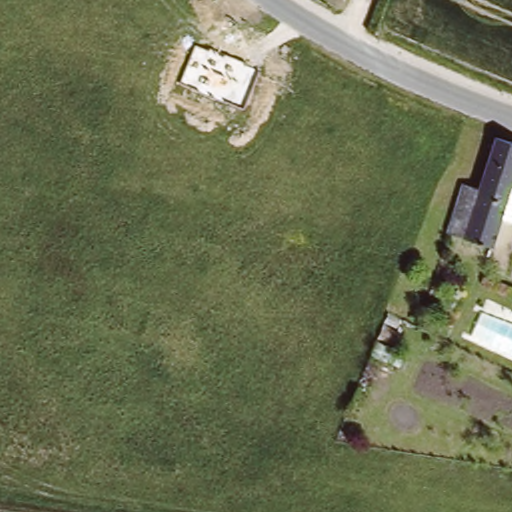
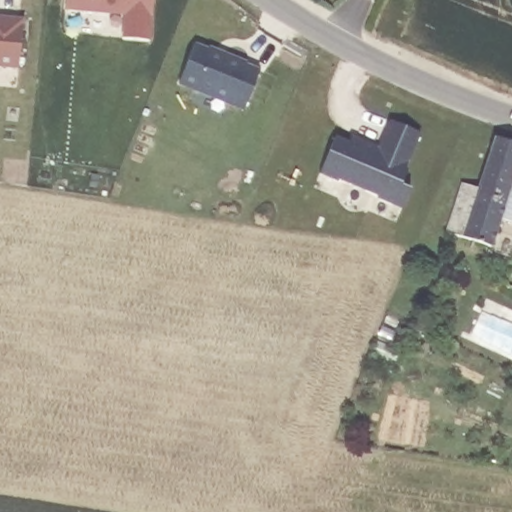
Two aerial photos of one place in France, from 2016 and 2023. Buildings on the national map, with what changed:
new [(65,11),(65,0),(153,0),(151,41),(122,39),(124,16),(65,11)]
new [(23,18),(19,70),(0,68),(0,17),(23,18)]
unchanged [(245,109),(179,83),(195,43),(259,69),(245,109)]
new [(349,142),(352,136),(358,139),(379,147),(390,120),(421,132),(406,168),(409,169),(403,184),(412,187),(404,207),(379,197),(380,195),(341,180),(340,182),(321,174),(336,137),(349,142)]
unchanged [(447,227),(462,177),(483,183),(498,132),(512,136),(512,200),(499,244),(447,227)]
unchanged [(407,340),(401,353),(380,345),(385,332),(407,340)]

